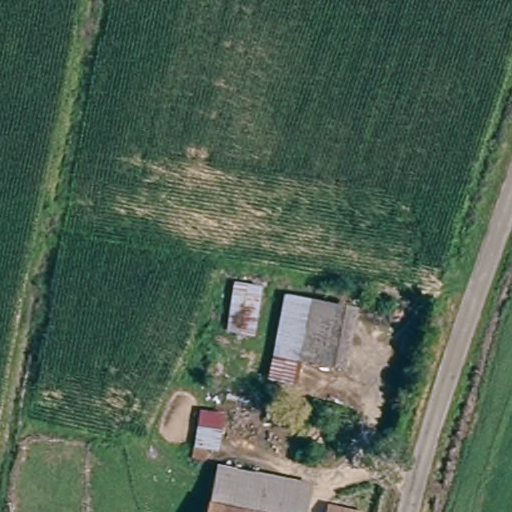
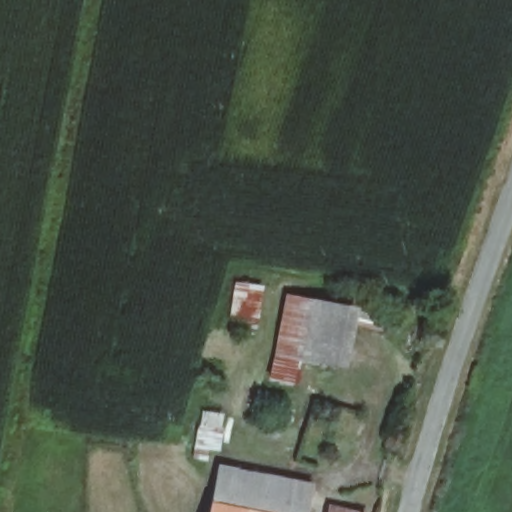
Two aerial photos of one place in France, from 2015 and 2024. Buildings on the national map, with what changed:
unchanged [(255,336),(225,333),(231,280),(264,285),(255,336)]
unchanged [(348,371),(303,363),(299,387),(269,381),(286,293),(361,307),(348,371)]
unchanged [(217,445),(201,443),(207,413),(223,417),(217,445)]
unchanged [(224,467),(313,487),(308,512),(214,512),(224,467)]
unchanged [(352,511),(354,505),(367,508),(366,512),(333,512),(334,508),(352,511)]

